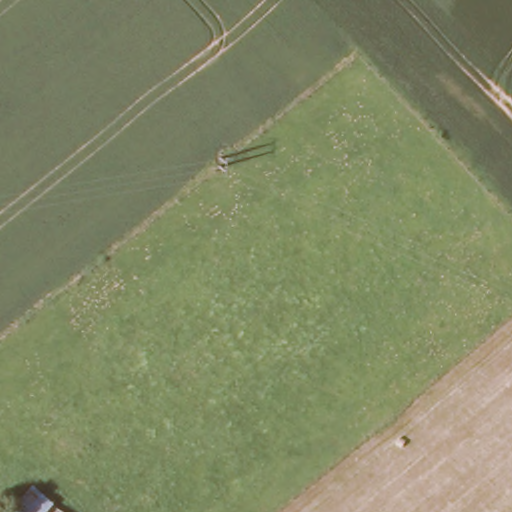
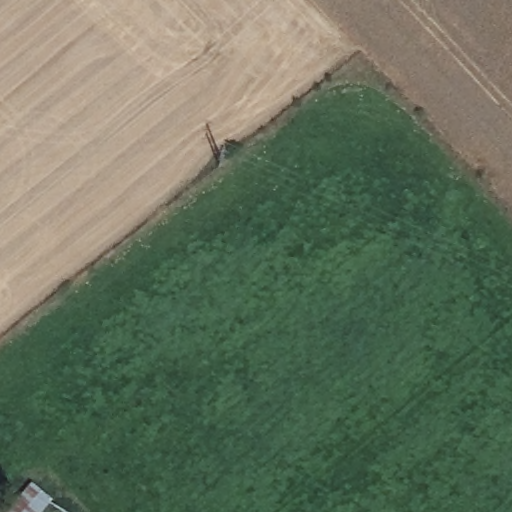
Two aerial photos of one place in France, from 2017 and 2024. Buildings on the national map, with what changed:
unchanged [(64,512),(12,512),(36,488),(57,505),(64,512)]

